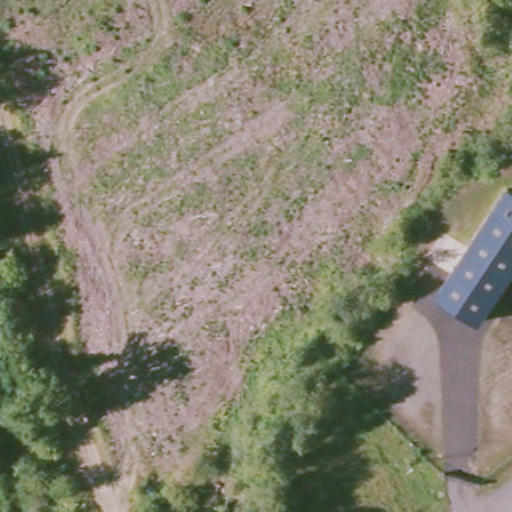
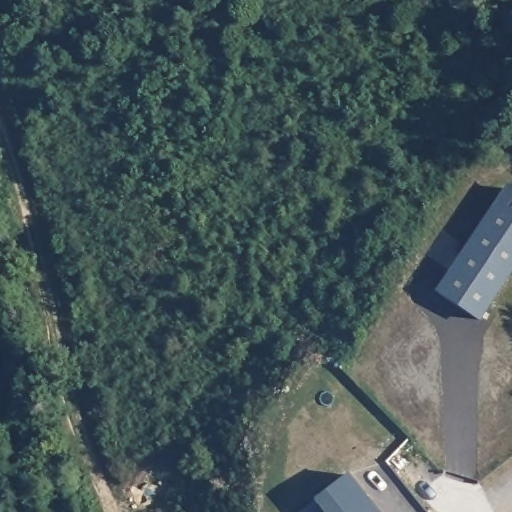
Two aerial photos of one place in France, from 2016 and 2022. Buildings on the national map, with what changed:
unchanged [(512,188),(512,280),(485,320),(444,290),(512,188)]
new [(314,502),(346,476),(375,512),(322,512),(314,502)]

